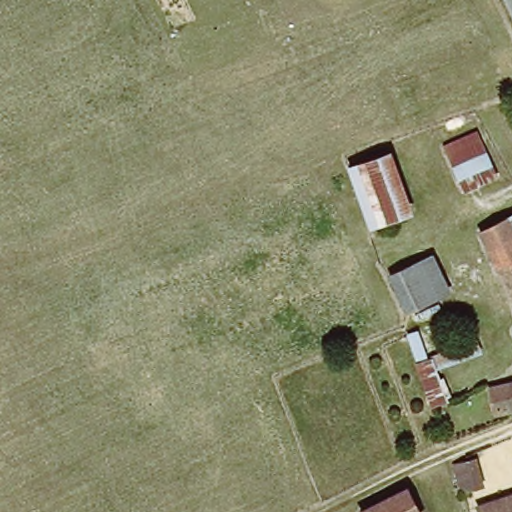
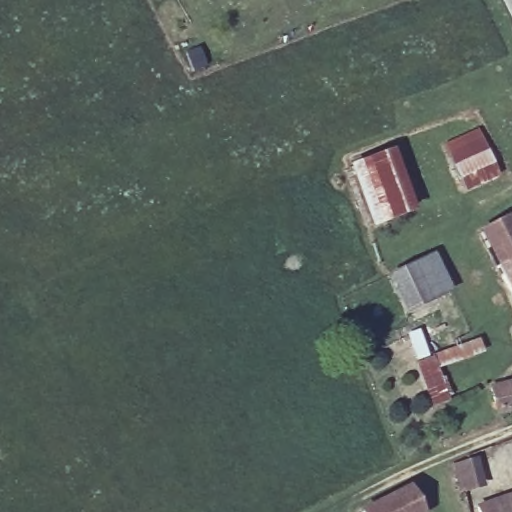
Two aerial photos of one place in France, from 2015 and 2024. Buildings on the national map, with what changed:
unchanged [(468,193),(448,144),(482,130),(502,179),(468,193)]
unchanged [(381,227),(362,183),(357,172),(390,157),(395,168),(415,214),(381,227)]
unchanged [(512,219),(512,224),(510,220),(512,219)]
unchanged [(483,233),(510,220),(512,224),(512,287),(483,233)]
unchanged [(453,291),(410,312),(392,276),(435,255),(453,291)]
unchanged [(442,371),(445,378),(448,377),(450,385),(466,381),(470,397),(436,409),(412,335),(425,333),(433,356),(484,339),(486,357),(442,371)]
unchanged [(498,417),(491,388),(512,383),(512,414),(498,417)]
unchanged [(420,512),(370,512),(411,491),(420,512)]
unchanged [(491,512),(512,504),(512,512),(491,512)]

